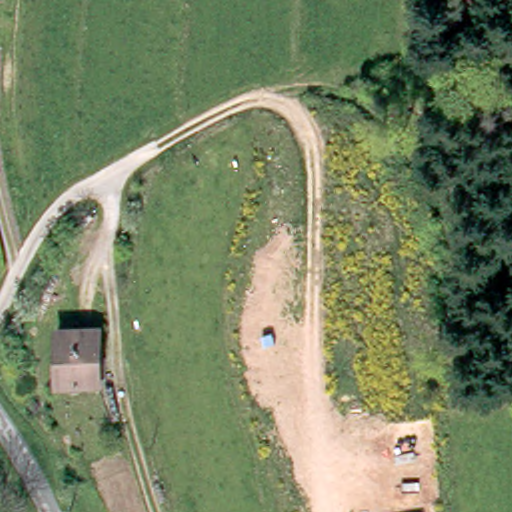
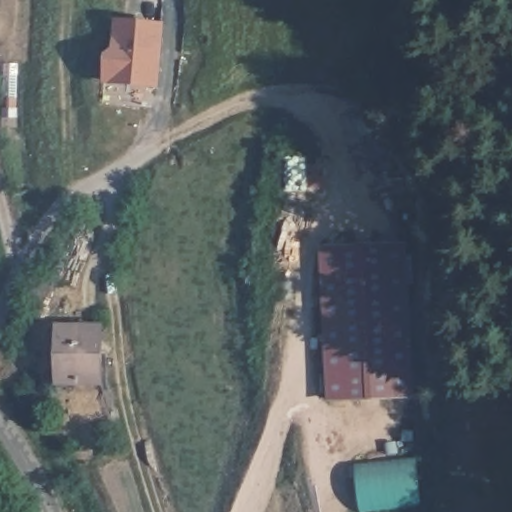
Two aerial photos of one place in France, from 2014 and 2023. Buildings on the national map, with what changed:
new [(158,89),(103,84),(105,55),(113,48),(115,19),(164,23),(158,89)]
new [(319,246),(408,243),(415,398),(326,402),(319,246)]
unchanged [(111,376),(71,385),(65,360),(61,360),(56,331),(99,322),(111,376)]
new [(420,505),(368,512),(360,512),(354,465),(415,458),(420,505)]

